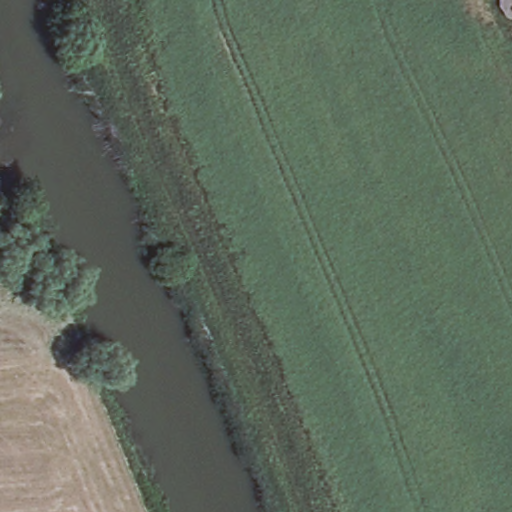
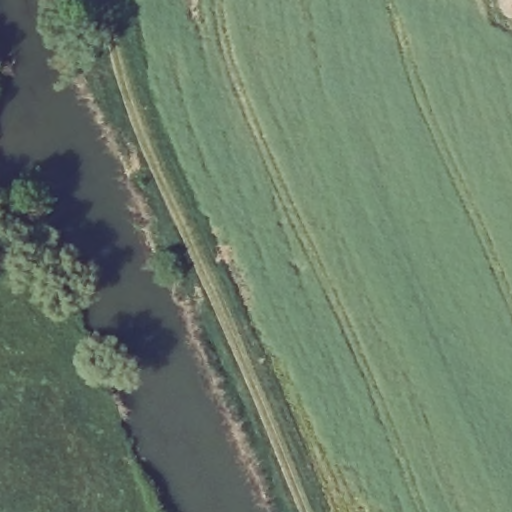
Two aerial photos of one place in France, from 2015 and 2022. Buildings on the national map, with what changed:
unchanged [(512,0),(512,20),(499,7),(500,0),(512,0)]

